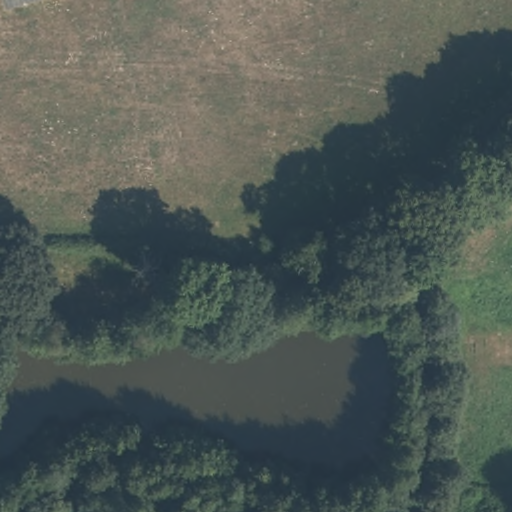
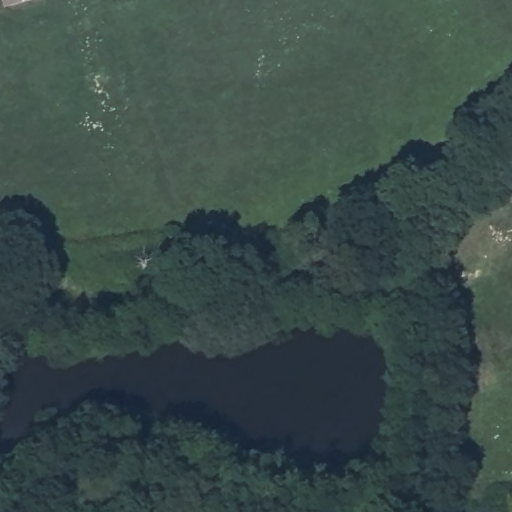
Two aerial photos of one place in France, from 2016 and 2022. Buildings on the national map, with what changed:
[]

